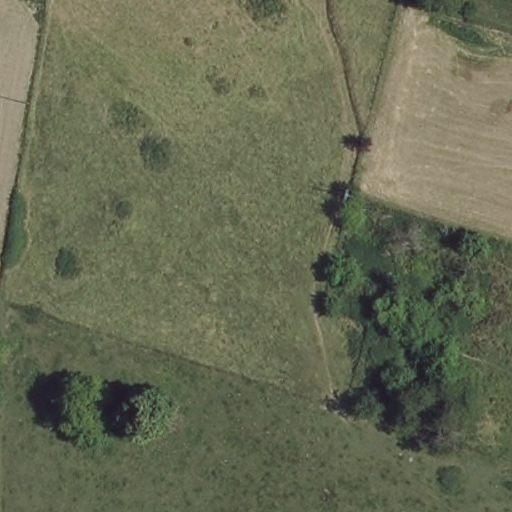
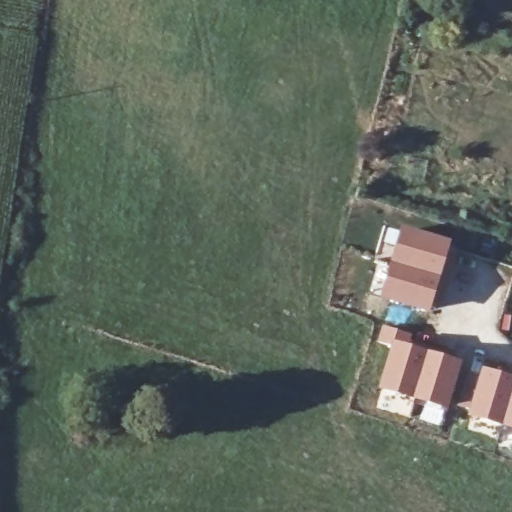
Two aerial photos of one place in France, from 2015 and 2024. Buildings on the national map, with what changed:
new [(448,244),(445,254),(456,258),(442,306),(431,303),(428,316),(376,300),(398,229),(448,244)]
new [(411,336),(407,348),(460,365),(446,414),(375,392),(387,353),(375,349),(381,327),(411,336)]
new [(512,380),(512,434),(465,420),(480,370),(512,380)]

